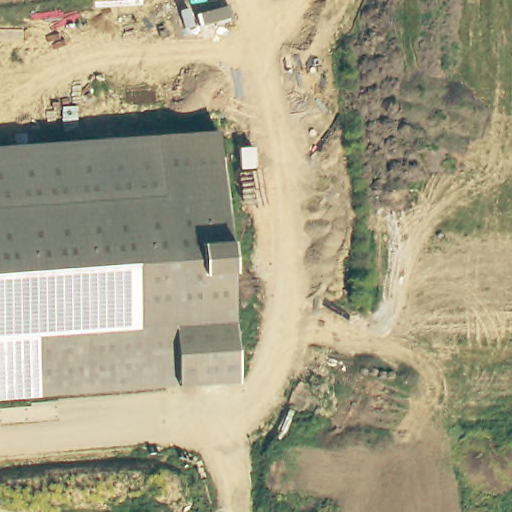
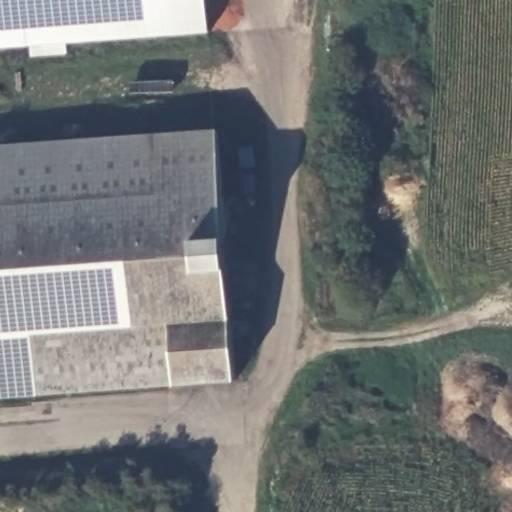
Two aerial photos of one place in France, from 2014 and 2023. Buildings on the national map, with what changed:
new [(209,33),(0,49),(0,0),(206,0),(209,33)]
unchanged [(234,380),(0,397),(0,147),(213,133),(234,380)]

